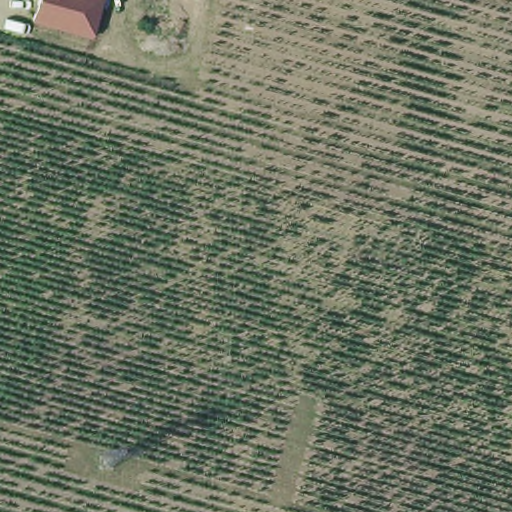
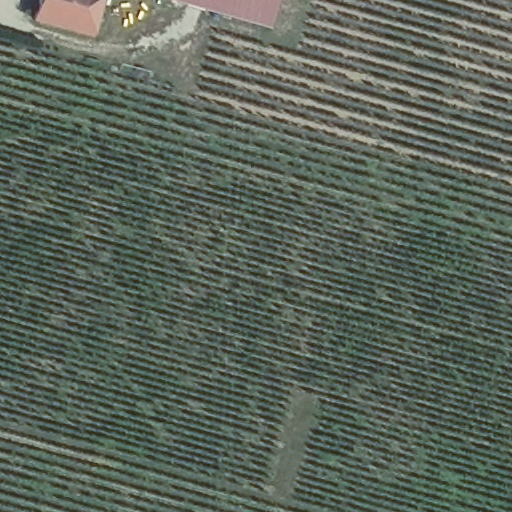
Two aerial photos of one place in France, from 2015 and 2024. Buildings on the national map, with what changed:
unchanged [(89,34),(31,19),(37,0),(99,0),(89,34)]
new [(271,32),(154,3),(155,0),(279,0),(271,32)]

